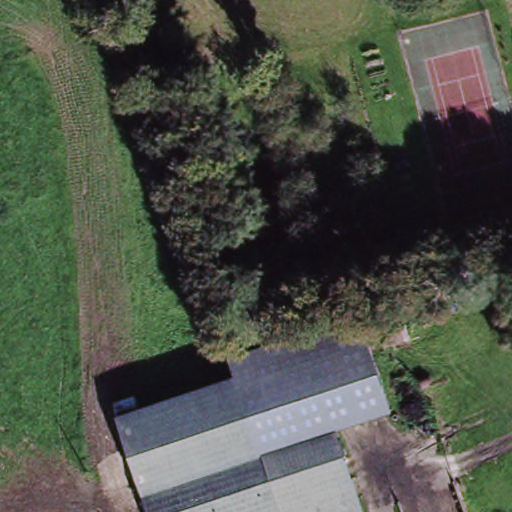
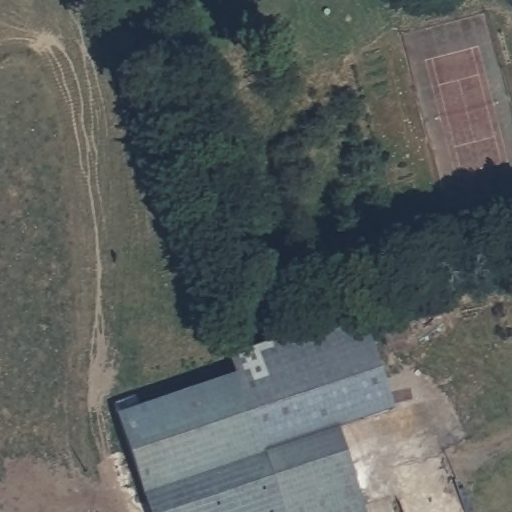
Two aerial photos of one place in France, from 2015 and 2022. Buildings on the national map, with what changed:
unchanged [(230,378),(359,330),(390,413),(335,432),(365,512),(148,512),(145,503),(127,454),(115,423),(115,421),(213,384),(230,378)]

